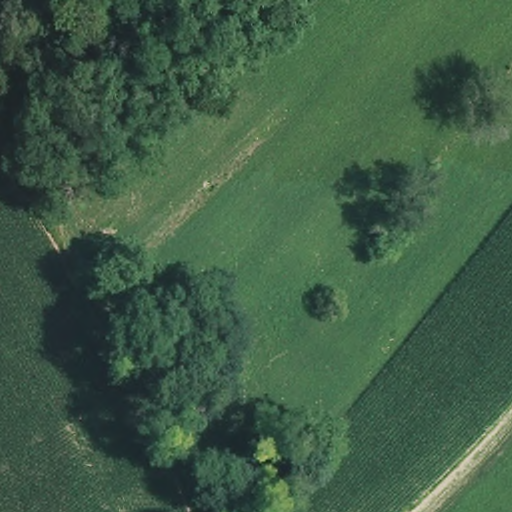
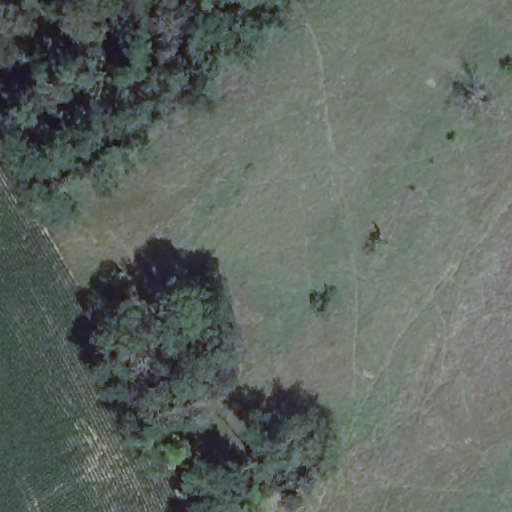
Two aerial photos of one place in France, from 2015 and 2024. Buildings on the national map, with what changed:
unchanged [(0,1),(0,0),(4,0),(0,1)]

